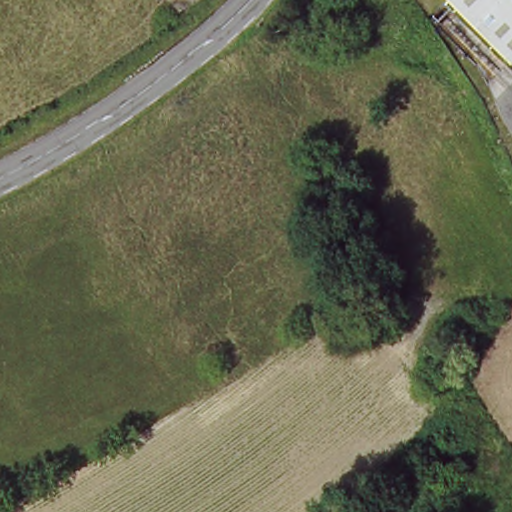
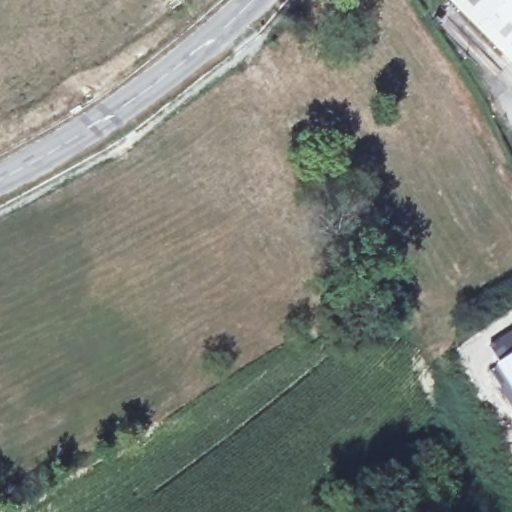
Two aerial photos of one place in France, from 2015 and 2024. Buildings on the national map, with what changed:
unchanged [(449,0),(512,0),(512,63),(449,0)]
new [(494,363),(512,351),(512,391),(494,363)]

